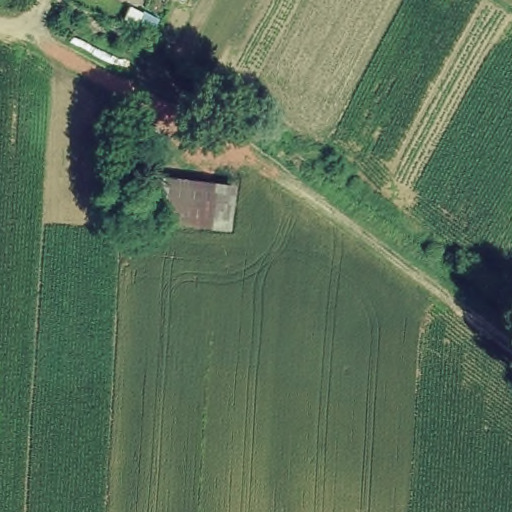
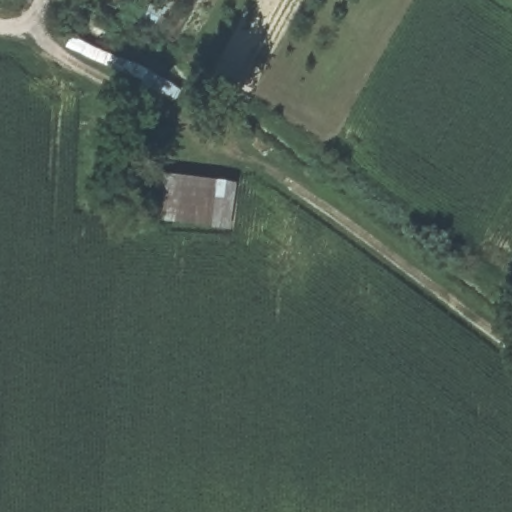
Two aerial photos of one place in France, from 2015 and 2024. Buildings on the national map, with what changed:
unchanged [(174,228),(178,211),(154,209),(158,174),(238,185),(231,232),(174,228)]

